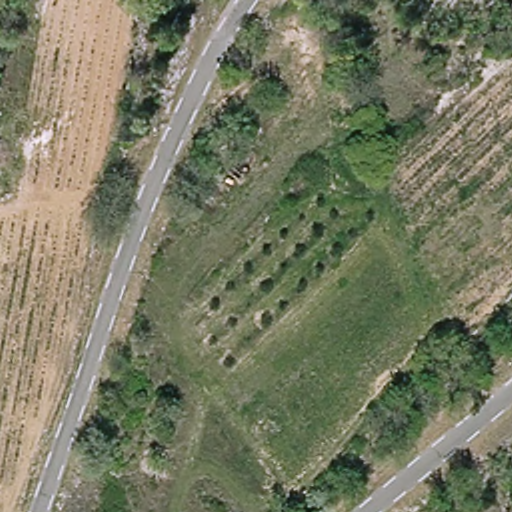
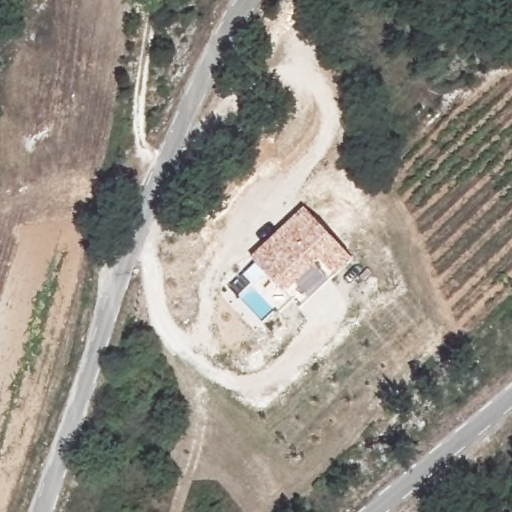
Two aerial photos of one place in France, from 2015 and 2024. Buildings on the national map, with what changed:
new [(305,209),(352,258),(335,276),(300,309),(286,293),(253,258),(305,209)]

